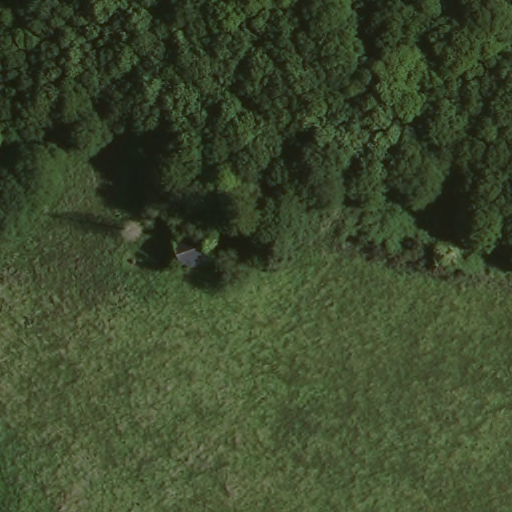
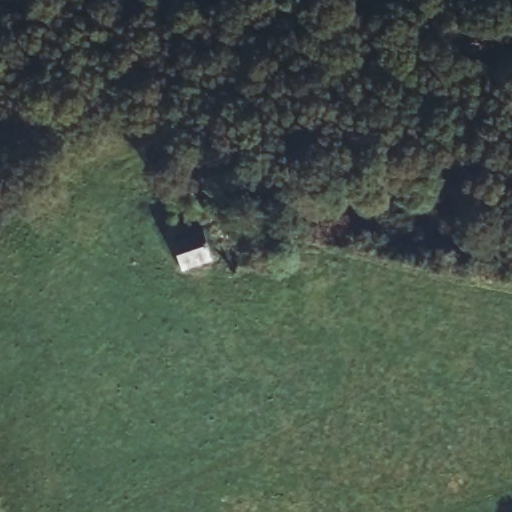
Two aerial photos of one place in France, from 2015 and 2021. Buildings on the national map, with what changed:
unchanged [(186,271),(171,246),(200,230),(214,255),(186,271)]

